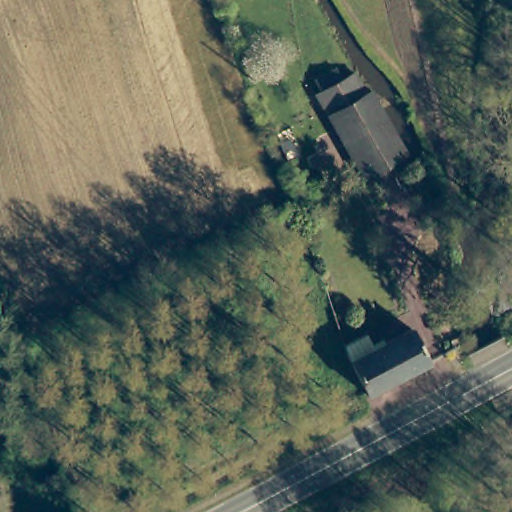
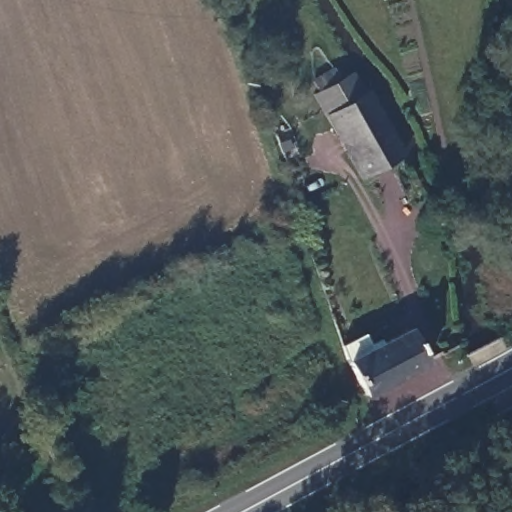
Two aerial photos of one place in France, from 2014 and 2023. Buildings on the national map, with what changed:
unchanged [(340,71),(346,82),(358,75),(370,97),(373,95),(407,151),(363,175),(319,98),(325,94),(318,83),(340,71)]
unchanged [(430,367),(368,400),(350,368),(344,352),(365,341),(373,355),(412,333),(430,367)]

